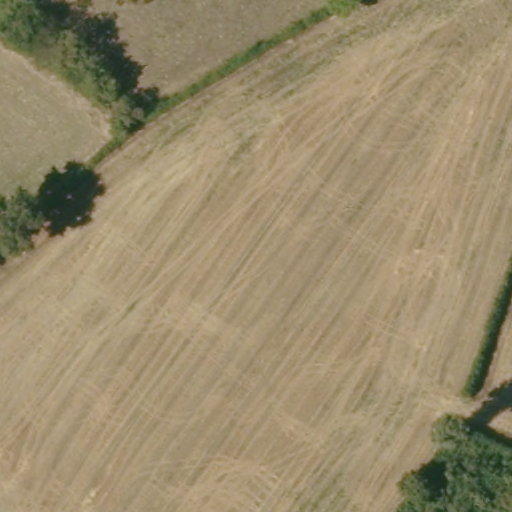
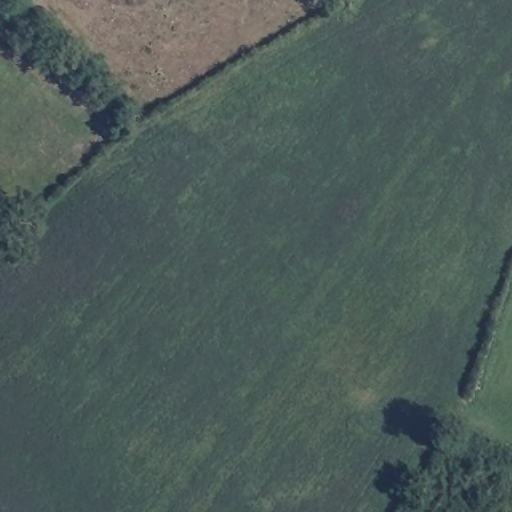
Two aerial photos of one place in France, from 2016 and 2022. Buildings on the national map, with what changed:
[]

